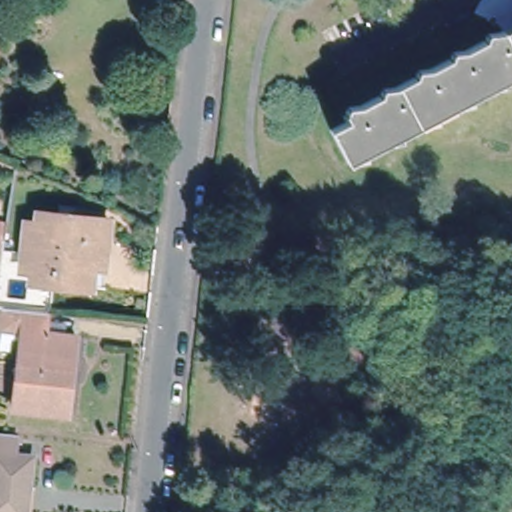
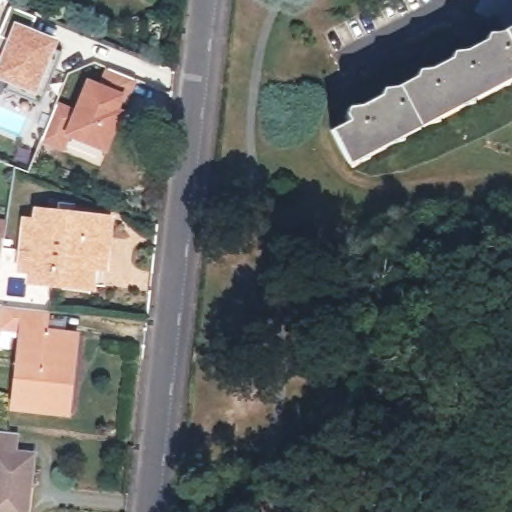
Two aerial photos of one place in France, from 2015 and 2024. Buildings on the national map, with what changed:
unchanged [(500,19),(490,26),(477,17),(488,0),(512,0),(512,30),(507,32),(500,19)]
new [(30,27),(56,39),(43,76),(49,80),(40,101),(6,89),(10,82),(0,78),(0,28),(8,7),(34,19),(30,27)]
unchanged [(351,120),(347,114),(355,105),(362,107),(383,97),(385,89),(397,90),(420,78),(422,70),(432,70),(455,59),(458,52),(466,54),(490,40),(492,34),(501,34),(507,32),(512,30),(512,72),(349,159),(333,130),(351,120)]
unchanged [(512,72),(512,77),(507,80),(506,86),(494,86),(471,99),(470,104),(458,105),(437,116),(435,123),(422,125),(401,135),(401,142),(385,144),(368,152),(368,157),(358,158),(350,163),(349,159),(512,72)]
new [(75,110),(85,78),(124,94),(119,110),(122,111),(107,154),(68,139),(62,153),(40,145),(56,104),(75,110)]
unchanged [(27,269),(28,260),(18,258),(23,215),(33,215),(34,205),(90,210),(104,211),(100,251),(86,250),(84,274),(27,269)]
unchanged [(0,242),(0,235),(1,235),(0,242)]
unchanged [(10,405),(17,328),(0,326),(0,317),(1,304),(45,308),(43,330),(73,334),(70,363),(65,411),(59,410),(10,405)]
unchanged [(16,450),(35,451),(30,502),(29,512),(0,512),(0,428),(19,430),(16,450)]

